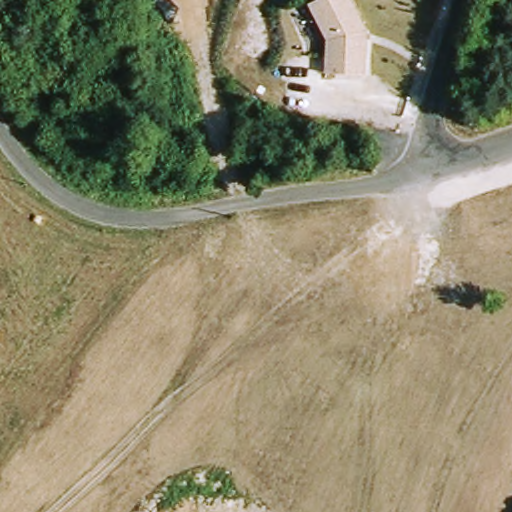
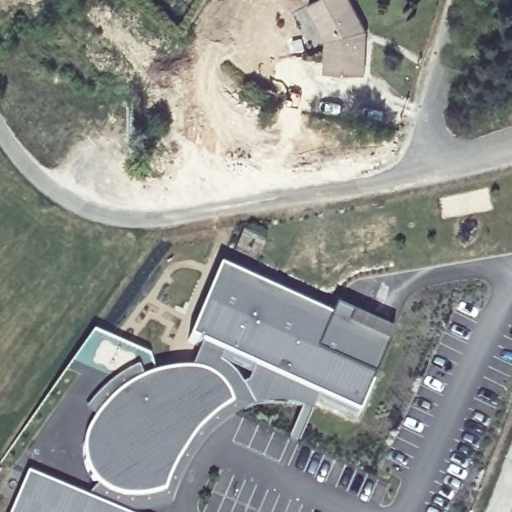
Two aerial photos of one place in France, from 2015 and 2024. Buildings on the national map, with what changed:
unchanged [(355,0),(369,29),(367,75),(325,72),(327,39),(309,5),(318,0),(355,0)]
new [(331,320),(335,309),(353,317),(348,327),(388,344),(359,413),(188,342),(219,274),(331,320)]
new [(205,423),(192,437),(181,452),(172,466),(165,481),(162,491),(151,494),(140,496),(127,496),(113,493),(102,487),(94,480),(88,471),(84,458),(84,447),(85,437),(92,425),(101,413),(111,401),(124,391),(137,383),(149,379),(168,374),(185,373),(201,374),(213,381),(222,390),(228,405),(205,423)]
new [(26,477),(110,512),(11,512),(26,477)]

